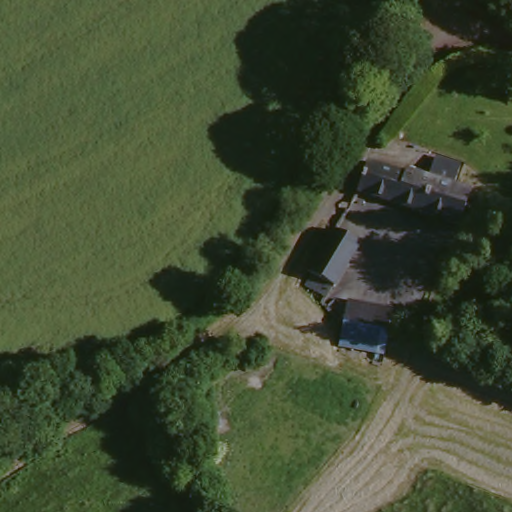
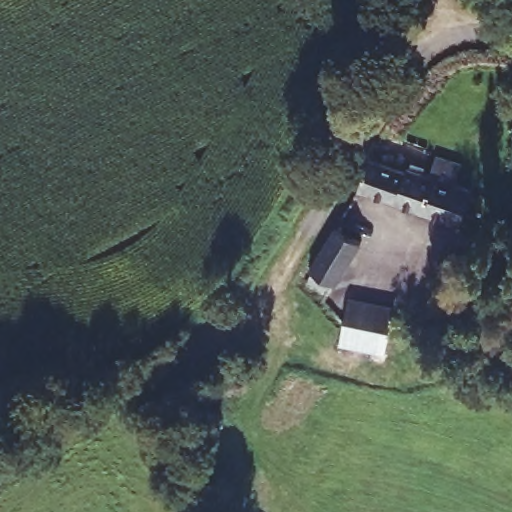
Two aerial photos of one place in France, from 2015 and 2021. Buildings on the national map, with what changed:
unchanged [(375,159),(412,169),(415,165),(475,187),(466,223),(457,220),(365,190),(375,159)]
unchanged [(338,230),(364,246),(340,288),(315,271),(338,230)]
unchanged [(390,347),(343,341),(352,299),(396,306),(390,347)]

